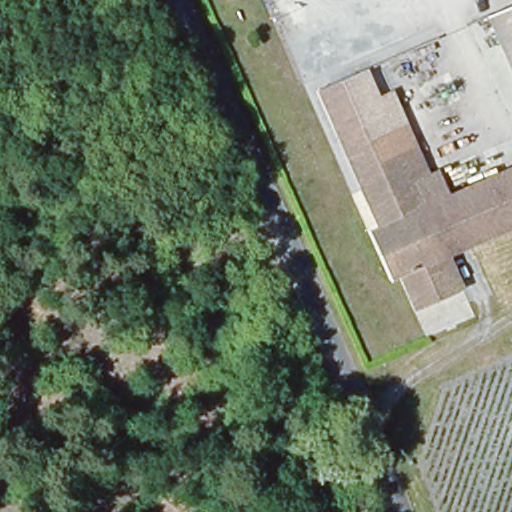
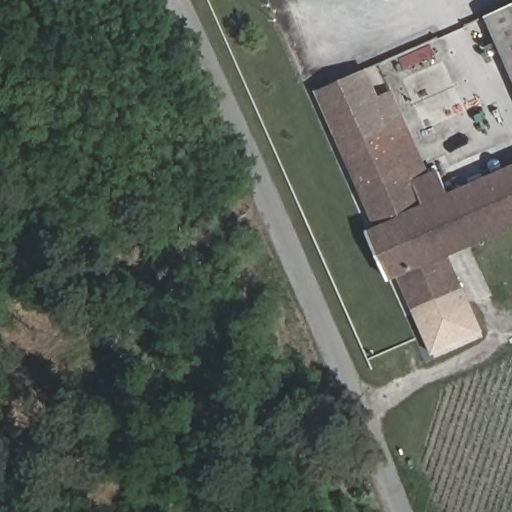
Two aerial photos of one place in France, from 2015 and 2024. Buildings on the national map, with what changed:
unchanged [(512,3),(512,62),(490,13),(512,3)]
unchanged [(337,135),(317,91),(368,68),(380,95),(394,89),(413,134),(431,174),(442,169),(452,193),(508,167),(512,175),(512,225),(450,254),(466,287),(416,310),(400,275),(392,280),(370,230),(378,225),(337,135)]
unchanged [(512,166),(512,175),(508,167),(512,166)]
new [(484,331),(432,355),(414,311),(416,310),(465,288),(484,331)]

